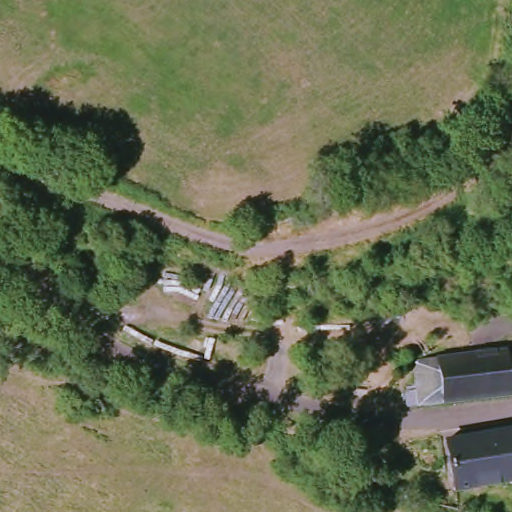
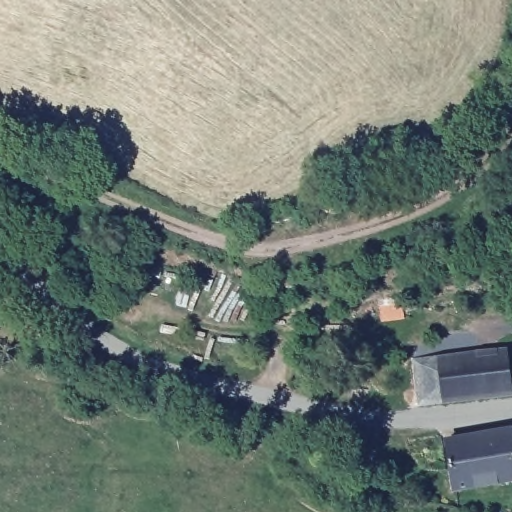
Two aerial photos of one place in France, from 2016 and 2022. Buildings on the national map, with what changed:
unchanged [(404,390),(419,387),(415,358),(507,346),(512,375),(512,393),(407,405),(404,390)]
unchanged [(447,443),(512,433),(512,482),(455,492),(447,443)]

